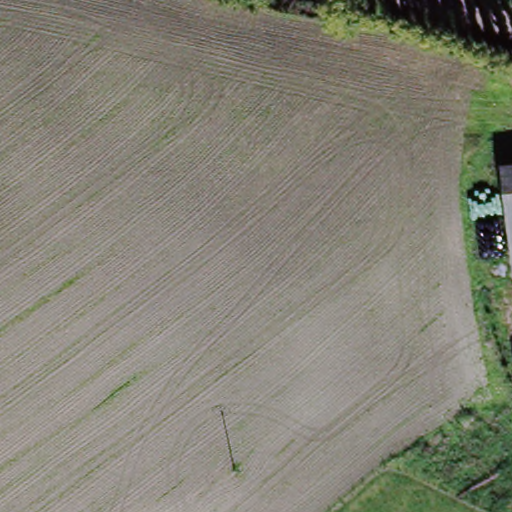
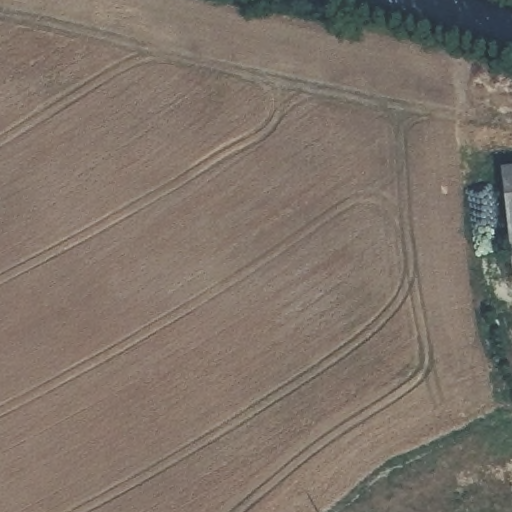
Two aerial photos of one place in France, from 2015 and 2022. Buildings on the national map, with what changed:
unchanged [(512,172),(512,231),(503,173),(512,172)]

